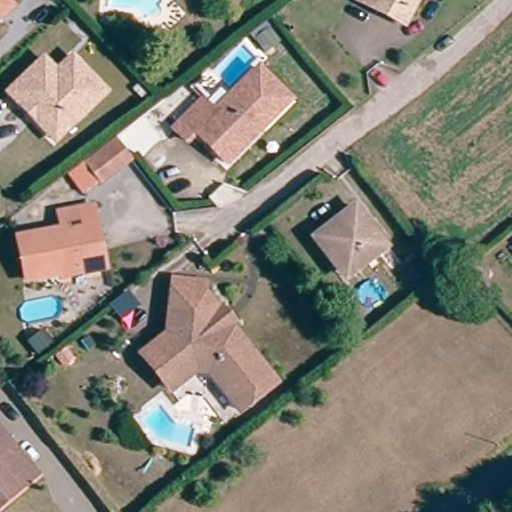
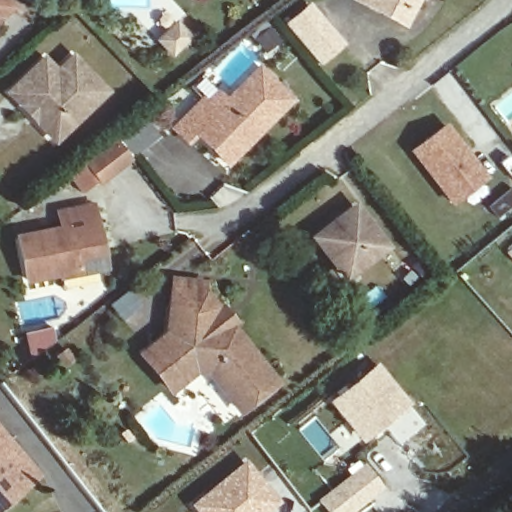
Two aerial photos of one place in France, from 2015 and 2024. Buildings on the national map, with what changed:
unchanged [(4,0),(11,7),(0,16),(0,0),(4,0)]
unchanged [(348,4),(349,0),(412,0),(403,18),(397,30),(363,11),(348,4)]
new [(185,17),(198,32),(179,49),(166,34),(185,17)]
unchanged [(50,132),(36,116),(23,102),(10,89),(45,55),(58,69),(74,54),(81,61),(107,90),(71,124),(55,138),(50,132)]
unchanged [(205,154),(189,139),(180,147),(168,135),(196,106),(208,118),(252,73),(284,105),(255,134),(246,143),(229,161),(221,169),(205,154)]
new [(489,176),(452,206),(409,151),(447,124),(489,176)]
unchanged [(101,181),(84,160),(117,135),(134,156),(101,181)]
unchanged [(330,257),(314,237),(353,207),(384,246),(364,261),(345,277),(330,257)]
unchanged [(97,268),(29,280),(21,237),(64,231),(61,215),(98,210),(104,247),(108,266),(97,268)]
unchanged [(145,353),(154,346),(167,335),(175,282),(207,287),(219,302),(219,303),(229,305),(238,317),(238,325),(283,380),(244,413),(210,372),(194,370),(181,380),(173,387),(145,353)]
new [(411,404),(408,406),(422,425),(400,445),(383,425),(363,443),(330,402),(378,364),(411,404)]
unchanged [(5,453),(31,482),(0,509),(0,448),(5,453)]
new [(384,489),(352,512),(326,512),(316,500),(365,464),(384,489)]
new [(278,503),(267,512),(194,512),(199,508),(196,505),(246,466),(278,503)]

